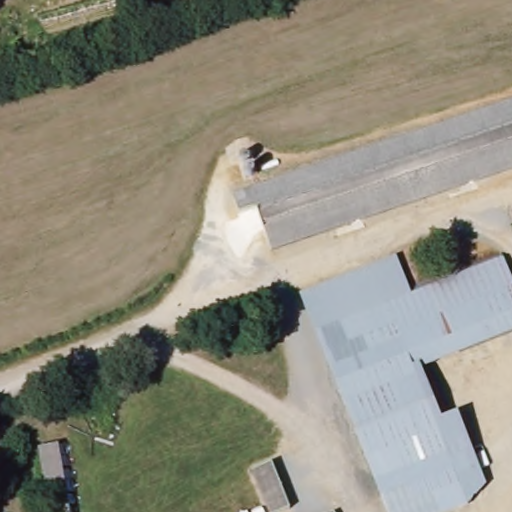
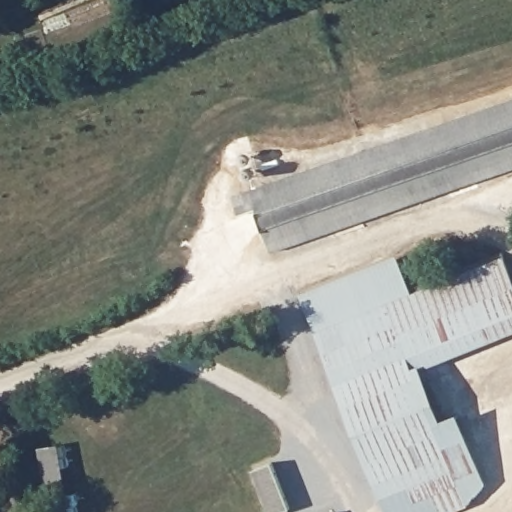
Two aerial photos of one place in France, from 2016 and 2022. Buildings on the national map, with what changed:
unchanged [(271,257),(257,215),(240,220),(234,203),(250,197),(250,196),(512,105),(512,174),(271,257)]
unchanged [(498,244),(512,279),(512,332),(460,353),(414,371),(436,426),(455,418),(481,486),(462,492),(412,512),(388,512),(317,333),(307,308),(401,271),(406,281),(498,244)]
unchanged [(65,512),(46,512),(35,447),(54,445),(65,512)]

